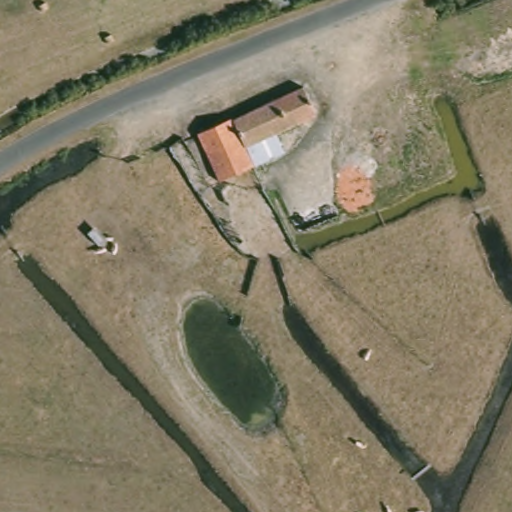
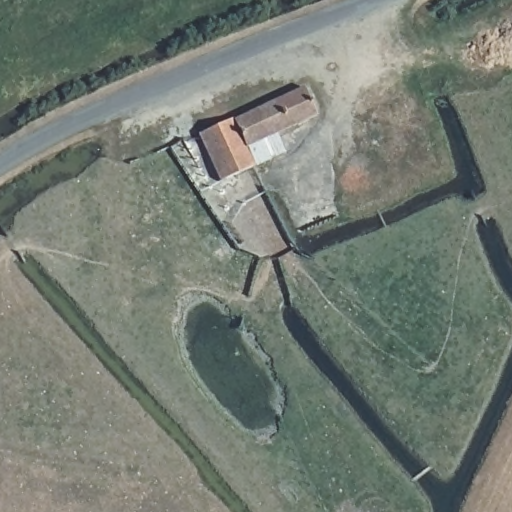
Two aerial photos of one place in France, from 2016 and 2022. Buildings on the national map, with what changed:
unchanged [(302,90),(316,122),(253,148),(259,166),(223,184),(201,136),(302,90)]

